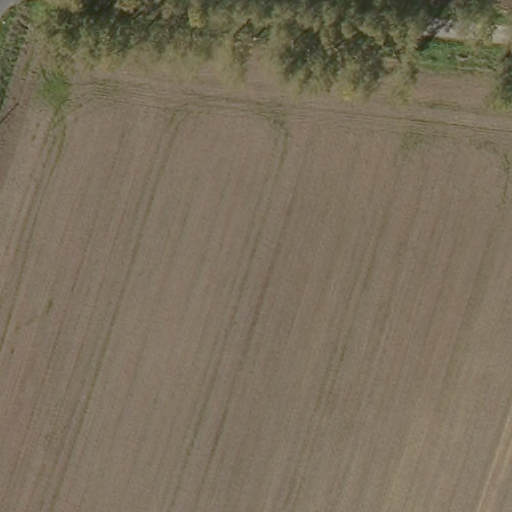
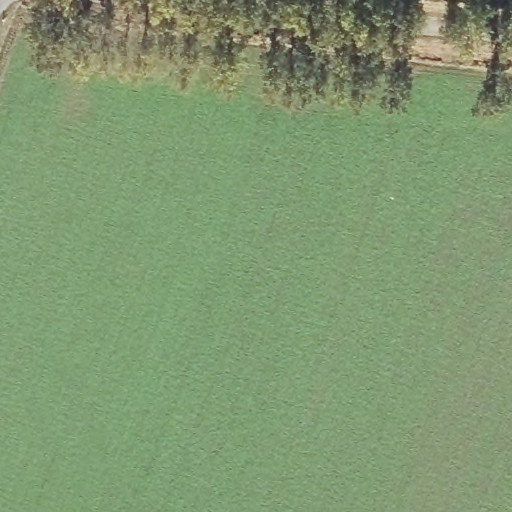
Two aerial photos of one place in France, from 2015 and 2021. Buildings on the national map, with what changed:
[]

